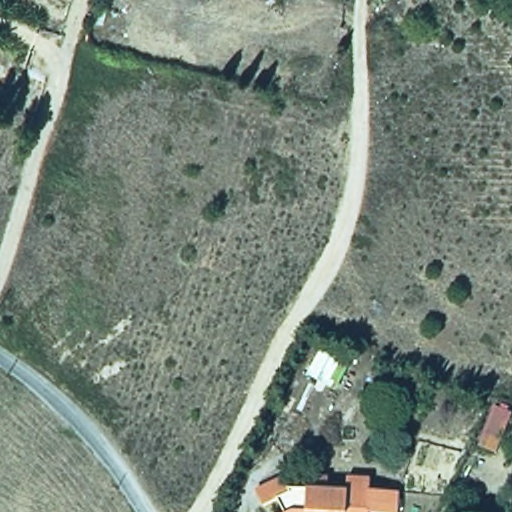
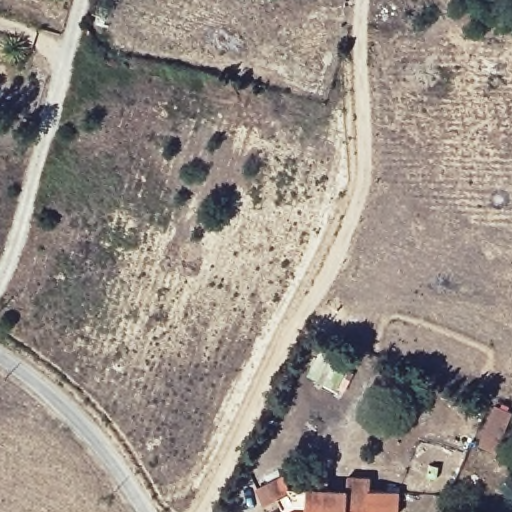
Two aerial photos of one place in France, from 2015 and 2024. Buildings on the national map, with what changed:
unchanged [(263,505),(255,489),(284,475),(290,488),(307,491),(307,487),(311,487),(311,484),(311,474),(329,474),(328,485),(328,488),(346,489),(347,476),(370,476),(370,489),(401,491),(400,512),(284,512),(277,499),(263,505)]

